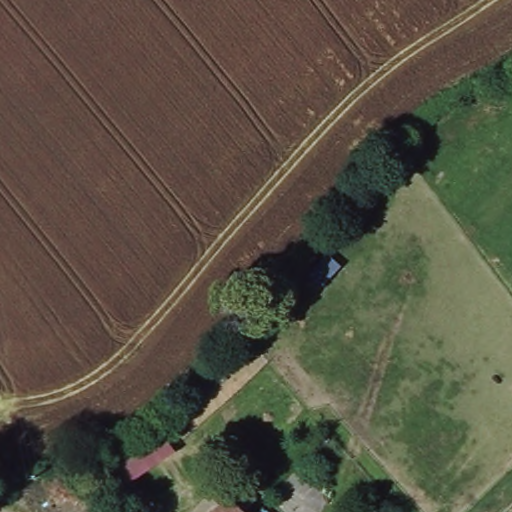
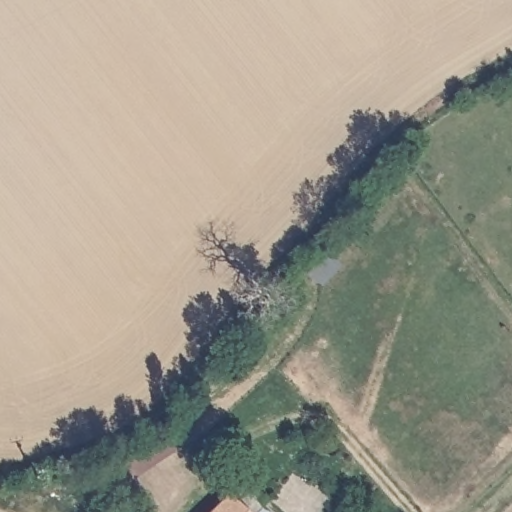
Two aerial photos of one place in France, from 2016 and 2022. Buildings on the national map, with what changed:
unchanged [(230,499),(232,502),(236,507),(239,510),(240,512),(217,512),(230,499)]

